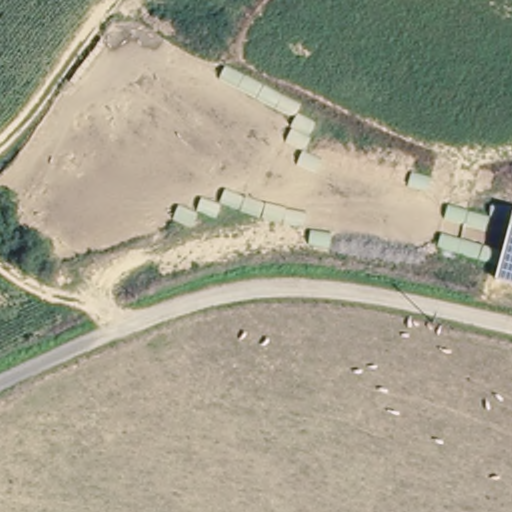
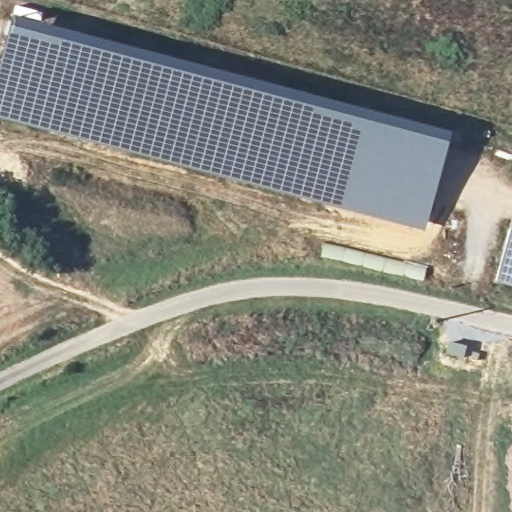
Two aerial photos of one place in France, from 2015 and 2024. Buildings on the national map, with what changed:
new [(449,130),(448,143),(425,231),(0,118),(0,70),(12,26),(15,19),(449,130)]
unchanged [(512,217),(512,283),(494,279),(512,217)]

